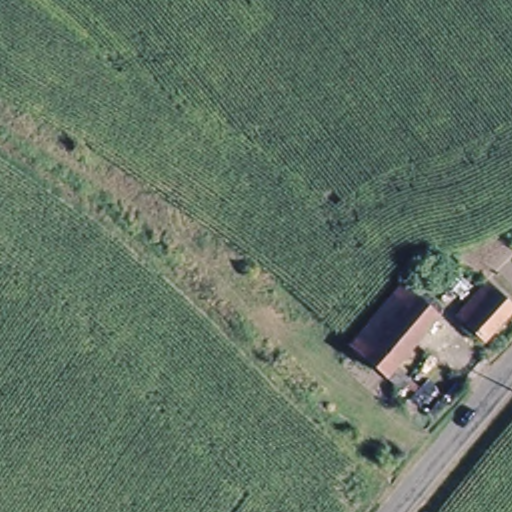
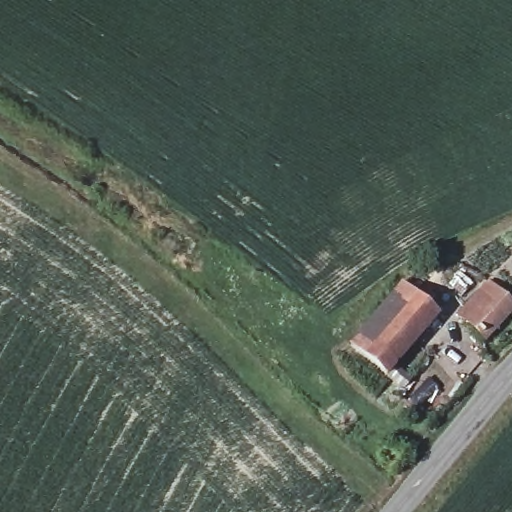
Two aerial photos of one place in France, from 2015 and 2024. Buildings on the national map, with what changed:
unchanged [(511,308),(477,346),(450,324),(484,283),(511,308)]
unchanged [(345,343),(395,284),(430,314),(391,361),(406,375),(397,388),(345,343)]

